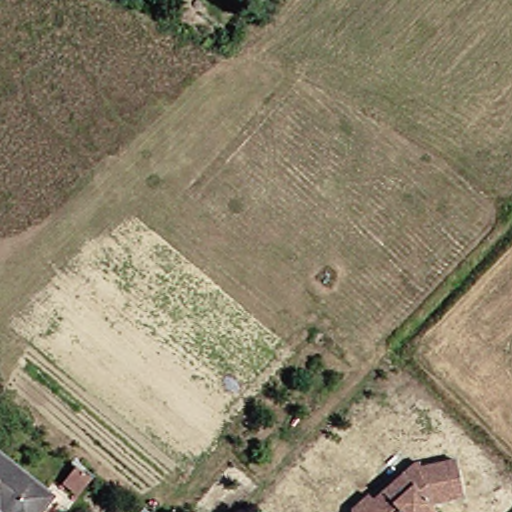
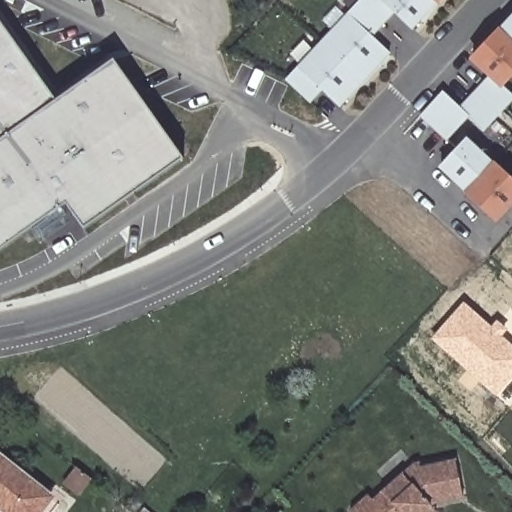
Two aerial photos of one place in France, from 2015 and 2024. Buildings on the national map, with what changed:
new [(437,5),(412,32),(392,14),(372,36),(391,53),(339,108),(321,91),(309,105),(284,81),(330,31),(320,22),(335,6),(345,15),(359,0),(442,0),(437,5)]
new [(512,18),(512,72),(500,85),(512,96),(499,109),(478,88),(490,75),(473,59),(512,18)]
new [(115,59),(185,158),(85,228),(67,203),(0,251),(0,19),(56,101),(115,59)]
new [(442,92),(461,109),(472,96),(496,119),(483,132),(469,118),(448,141),(421,115),(442,92)]
new [(467,141),(512,183),(512,203),(495,220),(441,169),(467,141)]
new [(431,340),(463,302),(491,327),(497,321),(508,330),(502,337),(512,346),(512,378),(496,396),(431,340)]
unchanged [(41,512),(11,512),(4,507),(0,511),(0,454),(53,497),(41,512)]
unchanged [(368,491),(372,495),(413,459),(418,458),(418,462),(454,455),(462,492),(432,498),(430,501),(435,507),(429,512),(350,512),(350,506),(368,491)]
unchanged [(91,478),(77,496),(62,483),(75,467),(91,478)]

